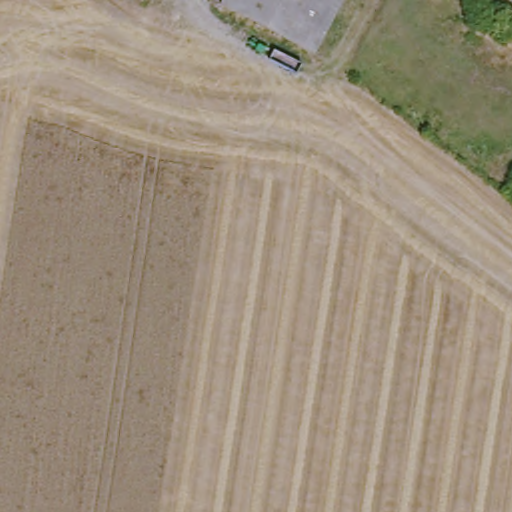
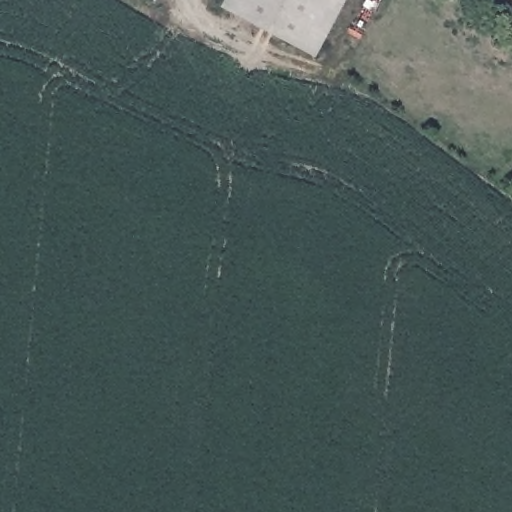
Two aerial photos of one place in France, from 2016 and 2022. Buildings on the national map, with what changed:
unchanged [(318,58),(228,12),(235,0),(348,0),(318,58)]

